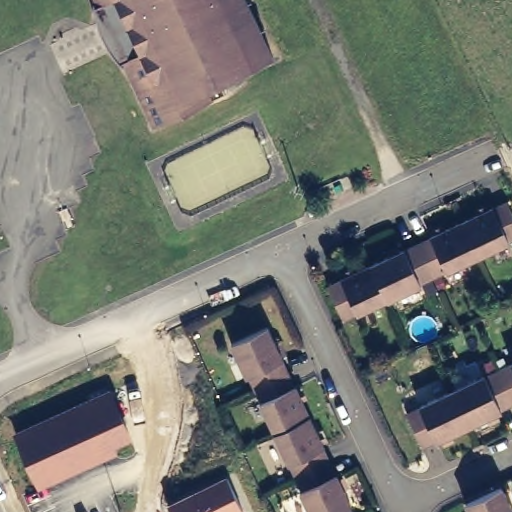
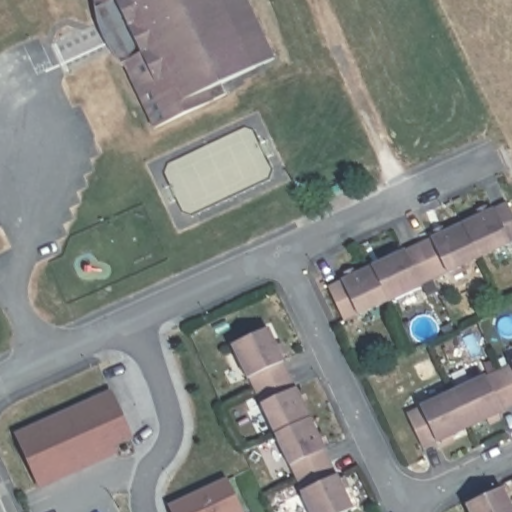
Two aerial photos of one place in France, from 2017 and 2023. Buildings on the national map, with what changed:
unchanged [(226,76),(231,90),(157,122),(126,55),(122,52),(114,44),(107,31),(100,10),(99,0),(250,0),(275,54),(226,76)]
unchanged [(419,288),(420,289),(387,305),(386,304),(356,318),(355,317),(342,324),(326,291),(401,254),(401,255),(504,206),(512,222),(512,245),(419,288)]
unchanged [(284,362),(282,363),(334,473),(335,473),(352,507),(341,512),(309,512),(299,491),(302,490),(247,376),(247,377),(231,345),(267,328),(284,362)]
unchanged [(419,409),(496,372),(497,374),(512,366),(512,408),(501,414),(501,415),(435,446),(435,444),(422,450),(407,417),(420,411),(419,409)]
unchanged [(116,447),(118,454),(38,488),(12,433),(112,388),(134,439),(116,447)]
unchanged [(167,505),(228,478),(242,512),(171,512),(167,505)]
unchanged [(468,503),(506,487),(512,500),(512,512),(472,512),(468,503)]

